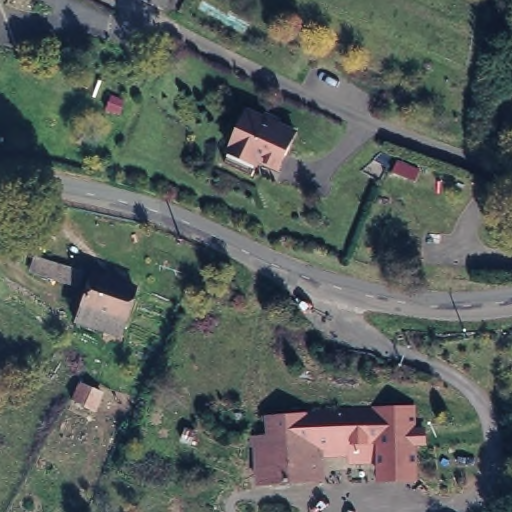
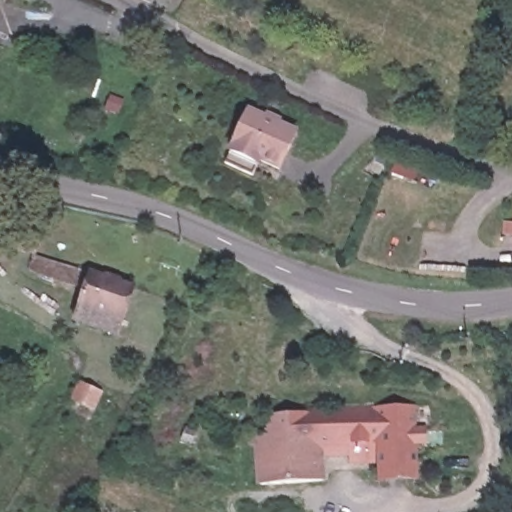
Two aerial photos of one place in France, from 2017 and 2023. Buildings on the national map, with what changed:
unchanged [(277,172),(230,156),(245,116),(265,123),(270,110),(272,107),(300,116),(297,121),(277,172)]
unchanged [(87,267),(79,285),(33,272),(40,255),(87,267)]
unchanged [(72,318),(77,302),(92,267),(136,279),(121,314),(117,330),(72,318)]
unchanged [(323,478),(295,481),(295,490),(288,490),(288,482),(262,485),(256,439),(263,438),(261,418),(305,413),(305,410),(360,403),(365,434),(375,433),(377,456),(350,459),(349,454),(322,456),(323,478)]
unchanged [(414,404),(415,426),(426,425),(427,446),(416,446),(418,481),(378,483),(377,463),(350,465),(350,459),(377,456),(375,433),(365,434),(361,408),(414,404)]

